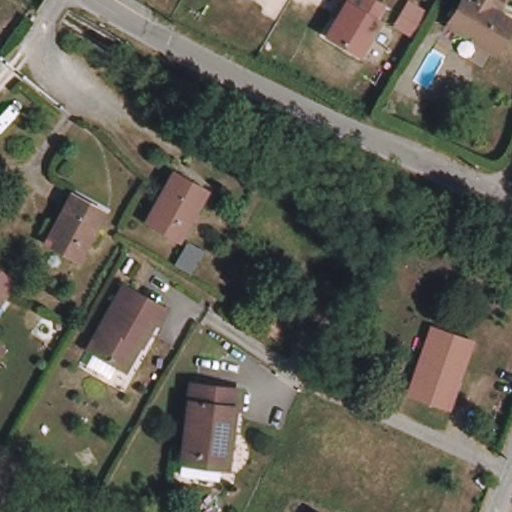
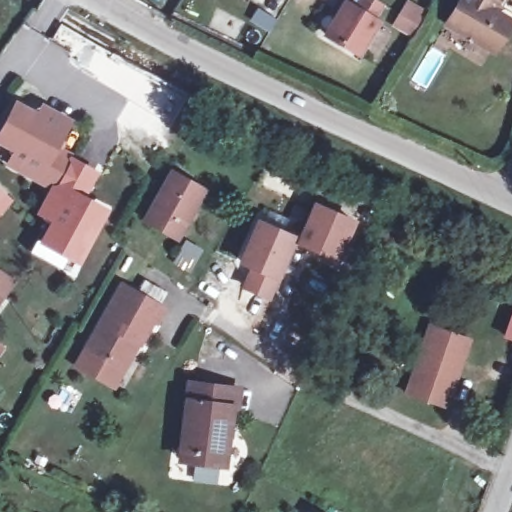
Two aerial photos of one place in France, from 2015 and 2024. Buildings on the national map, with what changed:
unchanged [(335,1),(335,0),(380,0),(387,4),(379,17),(386,21),(362,58),(322,35),(340,3),(335,1)]
new [(413,0),(418,2),(410,17),(402,30),(387,22),(394,8),(399,0),(413,0)]
unchanged [(502,0),(496,10),(512,20),(512,23),(496,51),(447,22),(461,0),(502,0)]
new [(0,145),(0,128),(16,99),(37,111),(42,102),(75,120),(60,147),(75,155),(53,192),(6,166),(12,151),(0,145)]
unchanged [(170,172),(203,191),(177,239),(142,221),(170,172)]
new [(0,214),(0,188),(14,200),(0,214)]
unchanged [(72,192),(104,209),(77,256),(47,239),(72,192)]
new [(298,235),(313,202),(357,220),(340,262),(295,242),(298,235)]
new [(298,235),(278,281),(270,301),(241,288),(249,267),(237,262),(256,217),(298,235)]
unchanged [(0,304),(0,269),(17,282),(0,304)]
unchanged [(121,367),(87,347),(126,282),(168,307),(160,322),(155,321),(142,343),(127,371),(121,367)]
unchanged [(472,342),(448,408),(406,392),(430,326),(472,342)]
unchanged [(0,349),(0,345),(2,347),(0,349)]
unchanged [(194,385),(244,396),(240,416),(233,415),(221,471),(190,463),(177,461),(179,452),(194,385)]
demolished [(342,512),(341,512),(278,512),(287,493),(342,512)]

